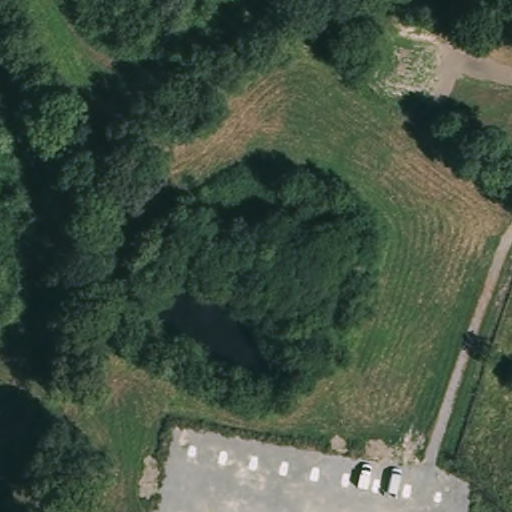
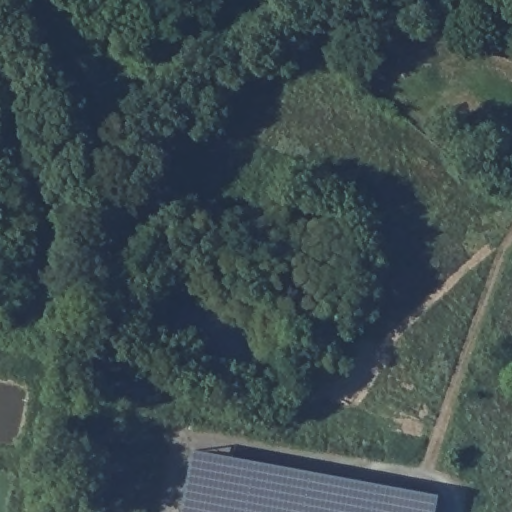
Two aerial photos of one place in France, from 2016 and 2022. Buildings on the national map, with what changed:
new [(187,439),(433,488),(428,512),(207,512),(175,505),(187,439)]

